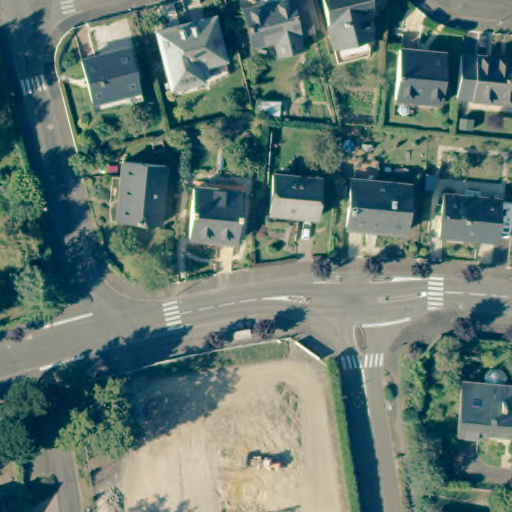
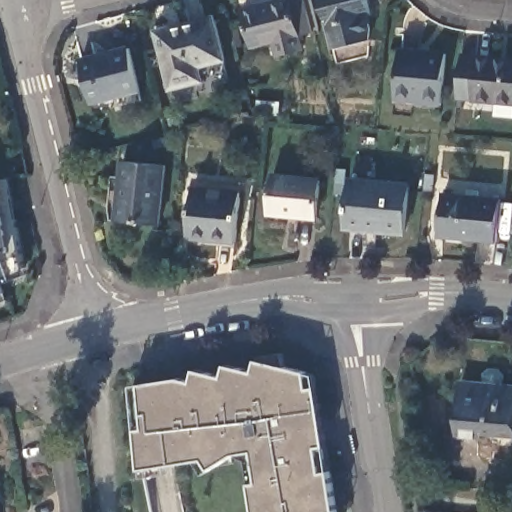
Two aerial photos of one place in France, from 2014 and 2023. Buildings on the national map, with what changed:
unchanged [(267,57),(264,45),(242,50),(234,17),(251,13),(250,7),(278,0),(280,6),(282,5),(294,2),(303,36),(291,39),(288,40),(291,51),(267,57)]
unchanged [(369,10),(363,11),(367,26),(365,36),(331,44),(321,0),(367,0),(369,10)]
unchanged [(214,20),(224,61),(200,67),(204,82),(171,90),(157,34),(214,20)]
unchanged [(130,52),(139,91),(92,103),(83,64),(130,52)]
unchanged [(445,56),(441,104),(395,101),(399,52),(445,56)]
unchanged [(512,63),(512,81),(510,105),(463,100),(467,59),(512,63)]
unchanged [(118,158),(160,162),(154,220),(126,217),(112,216),(113,212),(118,158)]
unchanged [(315,177),(311,214),(264,209),(268,172),(315,177)]
new [(26,276),(0,285),(7,300),(0,303),(0,182),(9,180),(26,276)]
unchanged [(408,187),(404,232),(347,227),(351,182),(408,187)]
unchanged [(193,190),(239,195),(234,242),(189,237),(193,190)]
unchanged [(500,202),(496,242),(440,236),(444,196),(500,202)]
new [(179,379),(192,383),(196,371),(223,377),(227,366),(254,373),(257,360),(283,355),(285,367),(315,375),(337,512),(256,512),(252,484),(248,458),(240,453),(211,471),(204,475),(194,462),(166,465),(166,475),(143,478),(142,470),(138,430),(132,387),(140,386),(179,379)]
unchanged [(512,386),(512,433),(478,430),(478,435),(453,433),(458,381),(512,386)]
demolished [(171,467),(278,457),(281,496),(283,496),(285,512),(176,512),(175,510),(171,467)]

